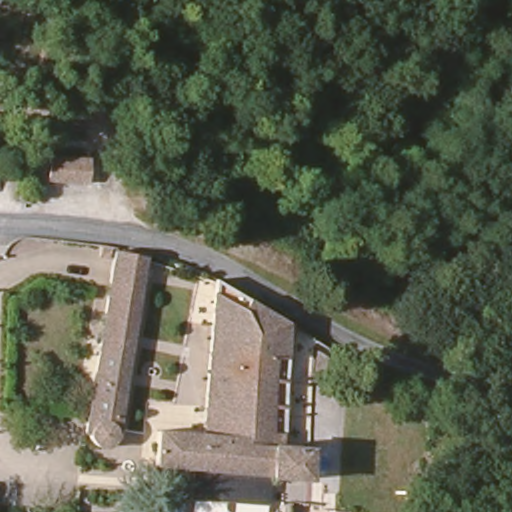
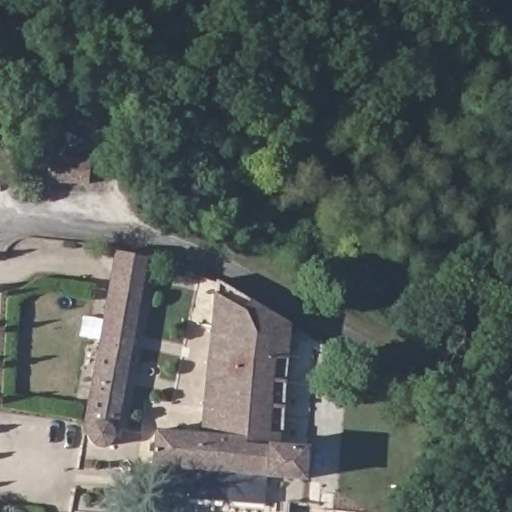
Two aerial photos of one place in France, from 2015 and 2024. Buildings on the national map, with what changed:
unchanged [(80,189),(38,188),(39,165),(81,165),(80,189)]
unchanged [(152,257),(134,365),(125,365),(112,441),(104,445),(92,442),(87,436),(91,408),(86,407),(114,251),(152,257)]
unchanged [(152,469),(155,432),(198,435),(219,282),(291,324),(285,445),(309,447),(305,484),(152,469)]
unchanged [(292,506),(313,507),(313,512),(291,512),(292,506)]

